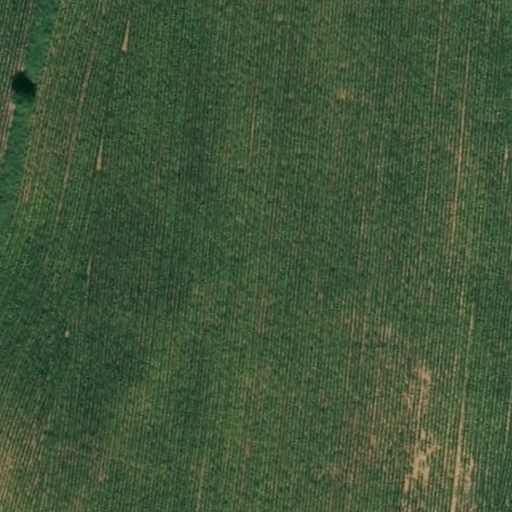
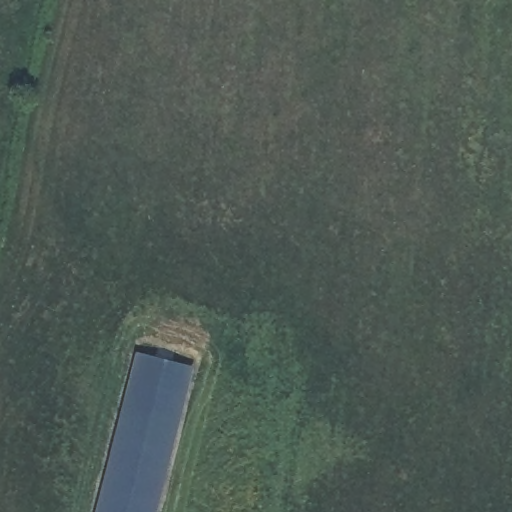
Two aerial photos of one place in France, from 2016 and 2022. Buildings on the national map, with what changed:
new [(135,352),(194,367),(157,512),(95,512),(135,352)]

